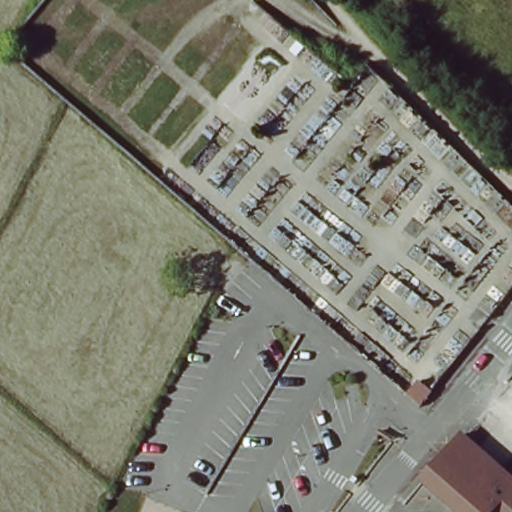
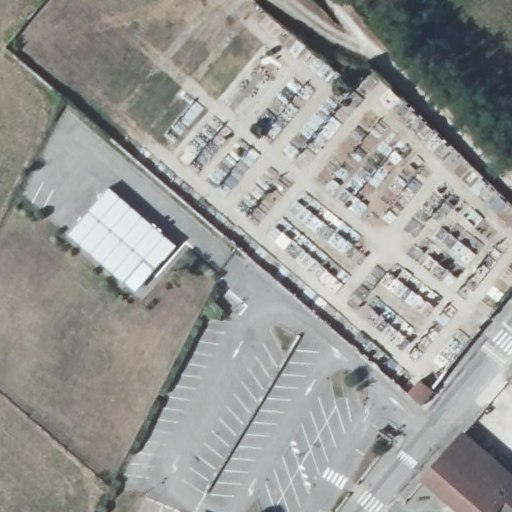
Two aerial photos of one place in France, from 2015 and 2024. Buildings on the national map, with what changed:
new [(185,253),(143,304),(67,237),(111,188),(185,253)]
new [(429,387),(417,402),(404,391),(417,376),(429,387)]
unchanged [(422,475),(444,451),(460,466),(498,501),(512,484),(512,512),(464,512),(422,475)]

